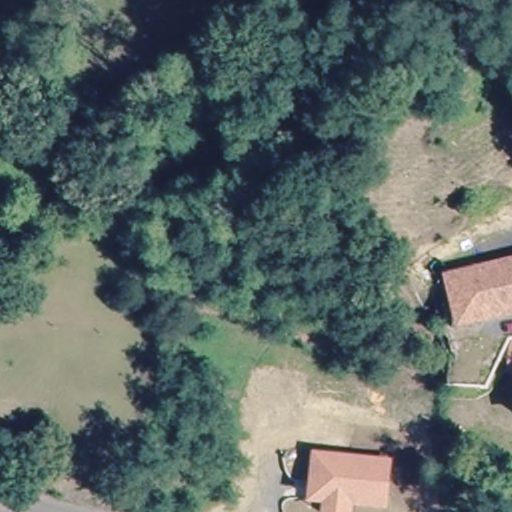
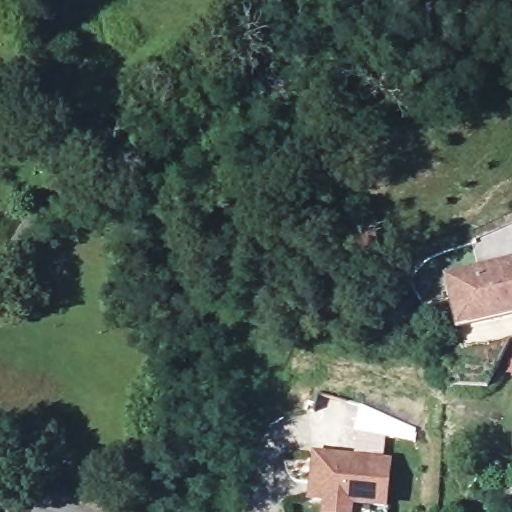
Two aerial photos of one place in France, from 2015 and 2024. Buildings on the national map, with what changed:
unchanged [(512,273),(512,320),(471,331),(460,287),(512,273)]
unchanged [(312,451),(392,458),(387,509),(355,506),(354,512),(323,512),(323,504),(307,503),(312,451)]

